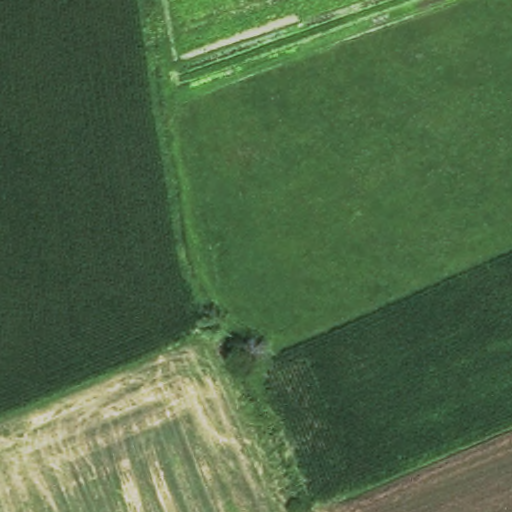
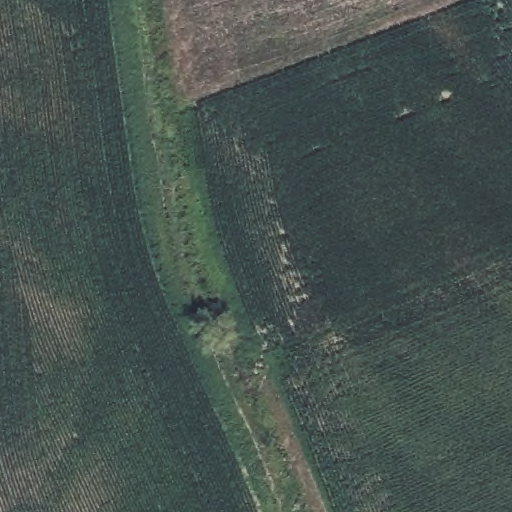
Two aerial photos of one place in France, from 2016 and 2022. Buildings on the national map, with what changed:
[]

